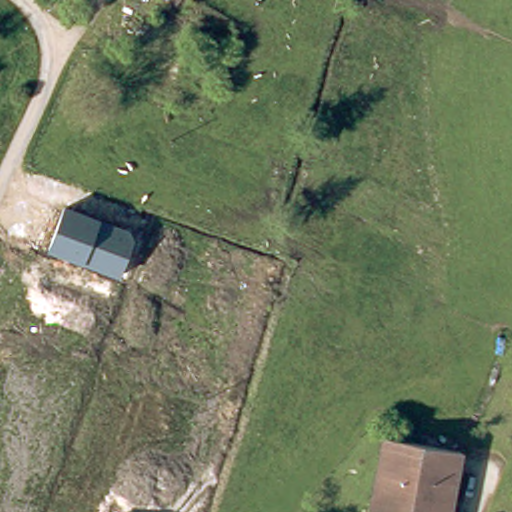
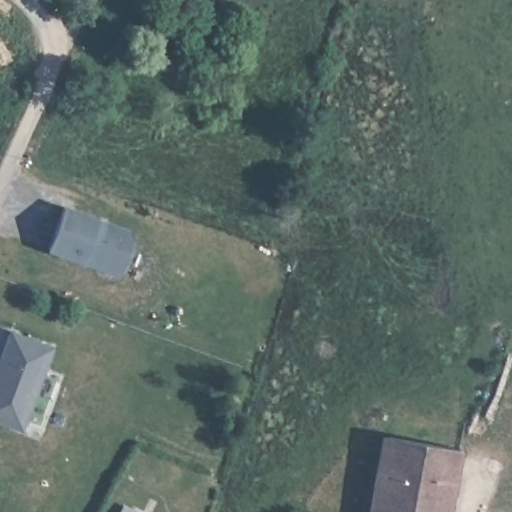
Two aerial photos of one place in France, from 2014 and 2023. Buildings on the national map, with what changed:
unchanged [(130,230),(132,240),(119,278),(83,263),(48,250),(63,205),(100,218),(130,230)]
new [(42,344),(15,419),(12,427),(0,423),(0,329),(42,344)]
unchanged [(450,446),(439,512),(369,512),(384,433),(450,446)]

